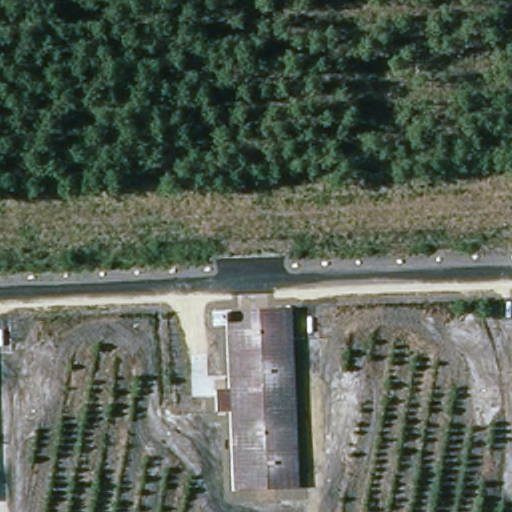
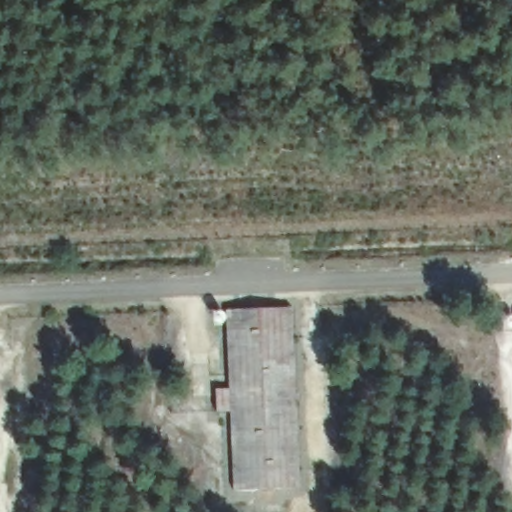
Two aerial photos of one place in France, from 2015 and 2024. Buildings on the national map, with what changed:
unchanged [(292,305),(298,492),(228,495),(223,308),(292,305)]

